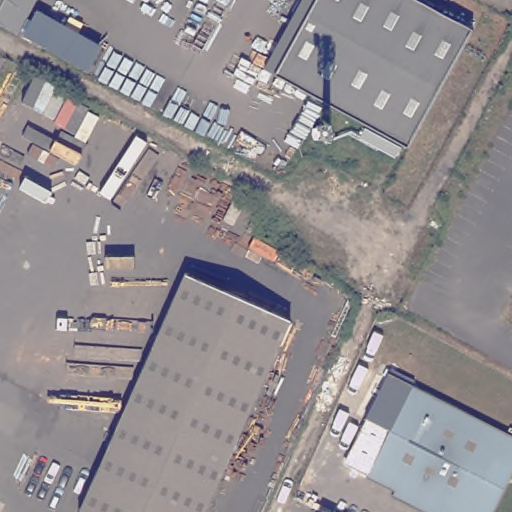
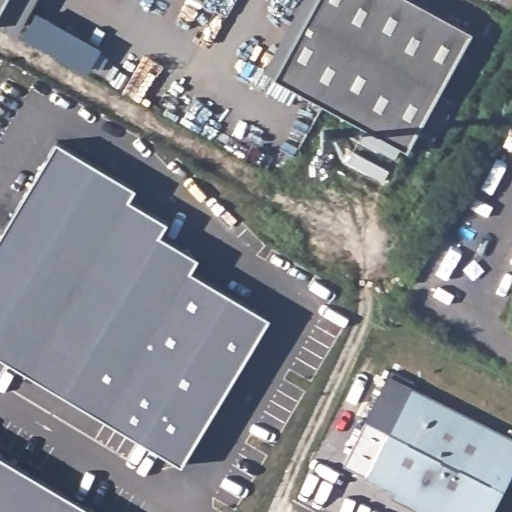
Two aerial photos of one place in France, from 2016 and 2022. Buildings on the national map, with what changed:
unchanged [(0,3),(0,0),(2,0),(0,3)]
unchanged [(2,0),(32,0),(14,33),(0,26),(0,3),(2,0)]
unchanged [(262,72),(301,0),(315,0),(272,77),(262,72)]
unchanged [(471,32),(406,150),(272,77),(315,0),(413,0),(471,32)]
unchanged [(361,129),(398,149),(395,155),(357,135),(361,129)]
new [(58,141),(135,187),(129,199),(166,222),(159,235),(199,257),(191,271),(270,317),(182,465),(0,357),(0,238),(58,141)]
demolished [(187,273),(290,321),(202,512),(83,512),(77,510),(187,273)]
unchanged [(512,303),(512,327),(502,322),(512,303)]
unchanged [(396,432),(372,419),(394,377),(512,437),(512,475),(492,512),(443,512),(373,476),(396,432)]
new [(95,512),(0,512),(0,456),(95,512)]

